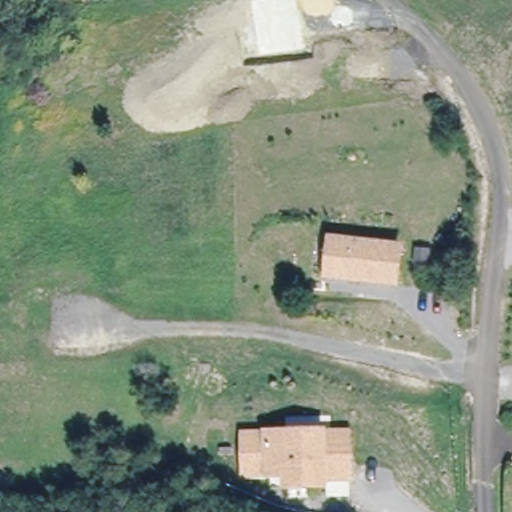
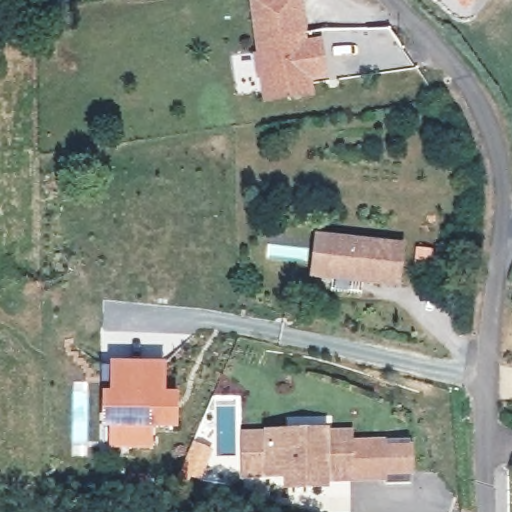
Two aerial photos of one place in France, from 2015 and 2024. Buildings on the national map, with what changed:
new [(269,99),(267,85),(255,2),(268,0),(298,0),(303,36),(305,47),(322,45),(322,47),(321,47),(325,74),(326,74),(326,76),(309,79),(311,93),(269,99)]
unchanged [(333,239),(401,247),(397,284),(329,277),(333,239)]
new [(165,360),(165,391),(178,392),(177,429),(155,430),(155,446),(110,445),(111,427),(102,427),(103,391),(111,391),(112,360),(165,360)]
unchanged [(246,469),(246,431),(325,429),(350,429),(351,446),(351,474),(339,474),(287,475),(287,471),(287,468),(246,469)]
new [(412,440),(412,484),(352,483),(351,474),(351,440),(412,440)]

